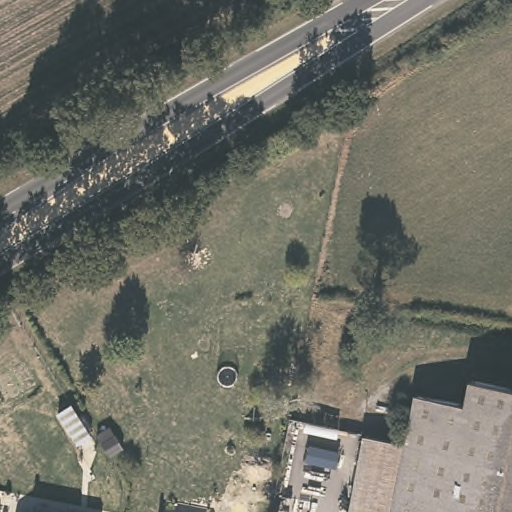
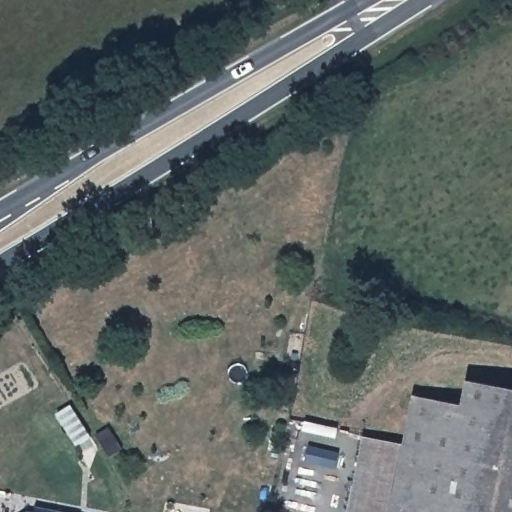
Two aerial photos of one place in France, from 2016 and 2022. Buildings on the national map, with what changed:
unchanged [(406,444),(415,394),(464,403),(469,377),(512,385),(512,512),(394,512),(406,444)]
unchanged [(364,437),(406,444),(394,512),(351,512),(364,437)]
unchanged [(83,505),(83,511),(94,512),(24,512),(25,512),(29,507),(34,506),(41,498),(83,505)]

